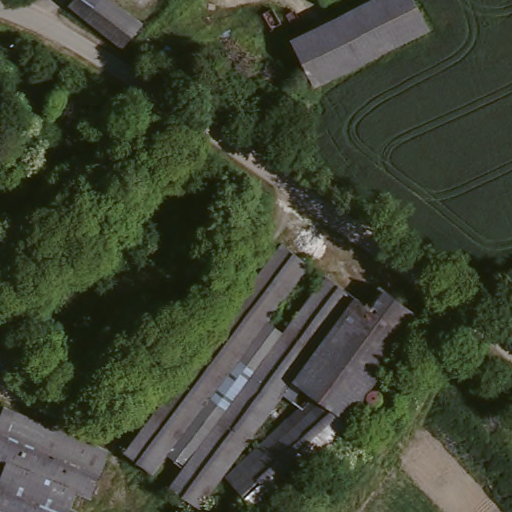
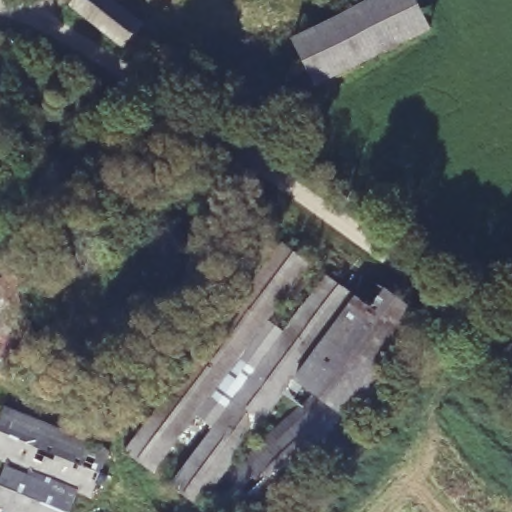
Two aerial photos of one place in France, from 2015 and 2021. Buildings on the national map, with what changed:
unchanged [(128,0),(136,0),(152,15),(128,43),(73,6),(77,0),(116,0),(123,6),(128,0)]
unchanged [(318,99),(284,39),(356,0),(431,0),(447,29),(318,99)]
unchanged [(5,113),(0,113),(0,59),(5,113)]
unchanged [(204,501),(139,453),(287,244),(313,261),(272,319),(290,331),(332,273),(356,292),(290,384),(204,501)]
unchanged [(9,285),(67,382),(62,391),(1,358),(0,357),(0,275),(17,277),(9,285)]
unchanged [(323,399),(308,398),(290,384),(356,292),(367,300),(381,282),(426,314),(347,423),(318,403),(323,399)]
unchanged [(355,429),(272,498),(247,468),(318,403),(347,423),(355,429)]
unchanged [(114,448),(89,502),(80,498),(72,512),(0,512),(0,409),(6,410),(9,404),(114,448)]

